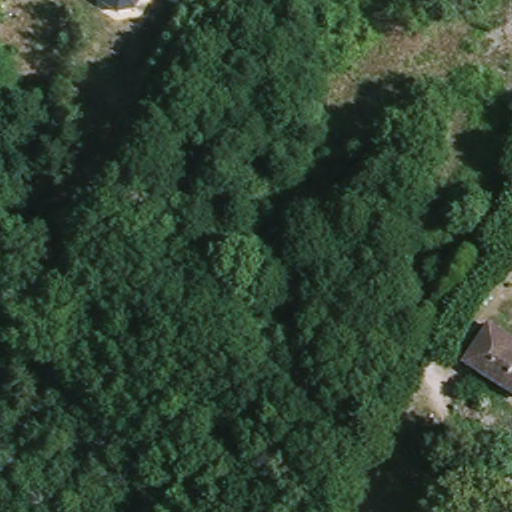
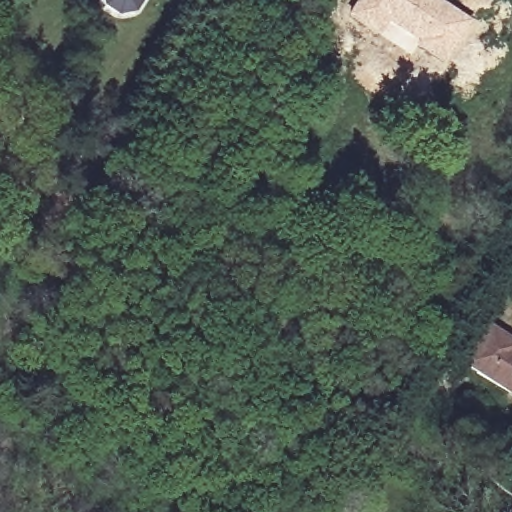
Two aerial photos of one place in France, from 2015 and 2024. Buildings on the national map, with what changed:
unchanged [(136,14),(119,18),(103,7),(102,0),(145,0),(136,14)]
new [(355,0),(441,0),(473,20),(444,64),(417,47),(412,54),(347,14),(355,0)]
unchanged [(486,328),(512,343),(512,400),(461,368),(486,328)]

